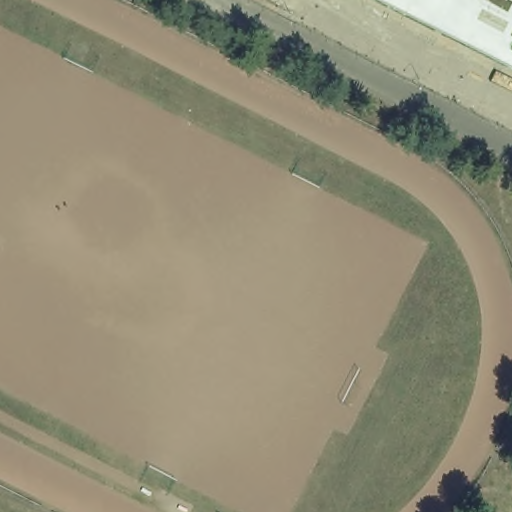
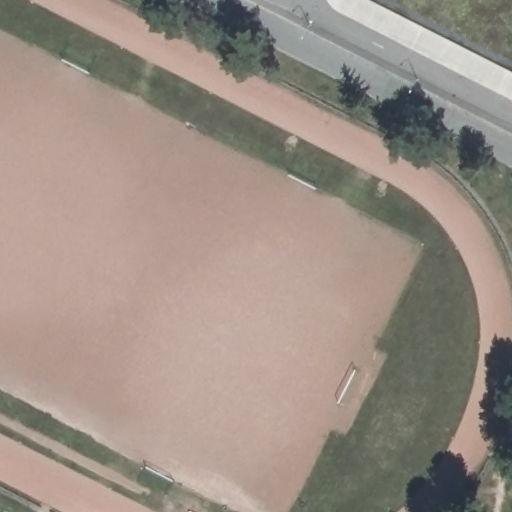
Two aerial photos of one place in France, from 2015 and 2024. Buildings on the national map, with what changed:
unchanged [(375,0),(512,0),(512,70),(375,0)]

